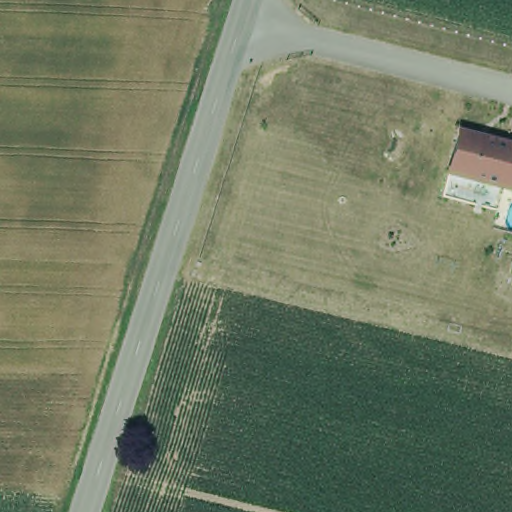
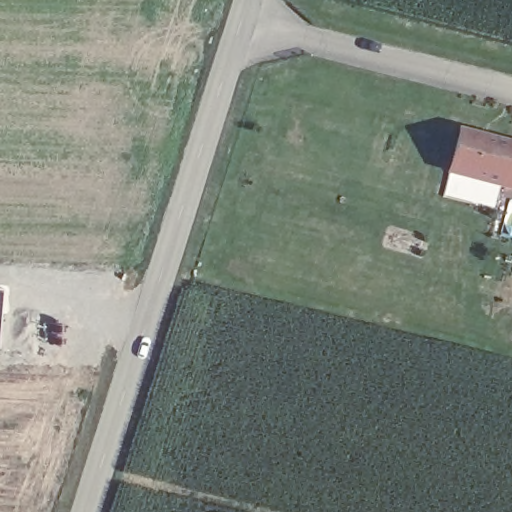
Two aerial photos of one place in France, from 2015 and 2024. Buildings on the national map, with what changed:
unchanged [(512,144),(512,187),(448,170),(458,130),(512,144)]

